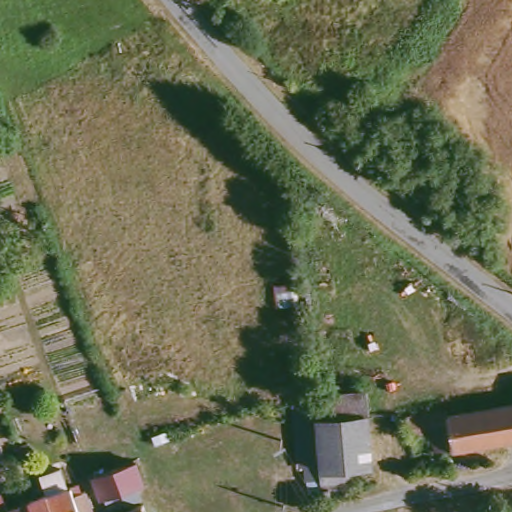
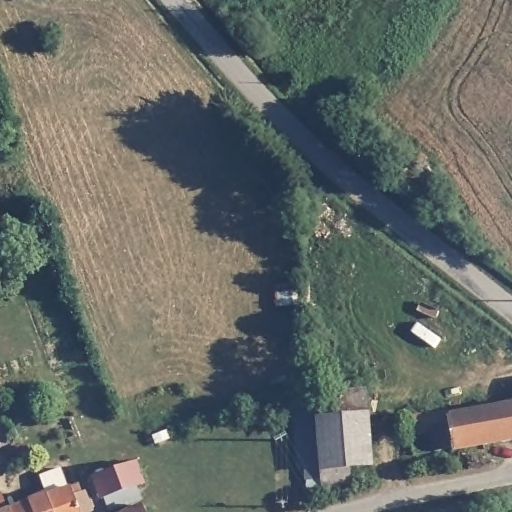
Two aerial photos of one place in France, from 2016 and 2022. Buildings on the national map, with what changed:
unchanged [(439,166),(430,190),(410,180),(418,157),(439,166)]
unchanged [(320,396),(369,393),(370,418),(321,419),(320,396)]
unchanged [(455,445),(440,448),(436,431),(413,435),(410,416),(445,410),(447,417),(512,405),(512,439),(456,450),(455,445)]
unchanged [(375,418),(377,466),(325,470),(322,432),(321,419),(370,418),(375,418)]
unchanged [(131,474),(143,475),(146,489),(106,500),(101,480),(131,472),(131,474)]
unchanged [(35,496),(34,493),(70,482),(70,485),(83,480),(91,502),(79,507),(81,511),(80,512),(0,512),(0,490),(5,488),(10,503),(30,497),(35,496)]
unchanged [(150,506),(153,512),(138,512),(150,506)]
unchanged [(495,512),(512,507),(512,512),(495,512)]

